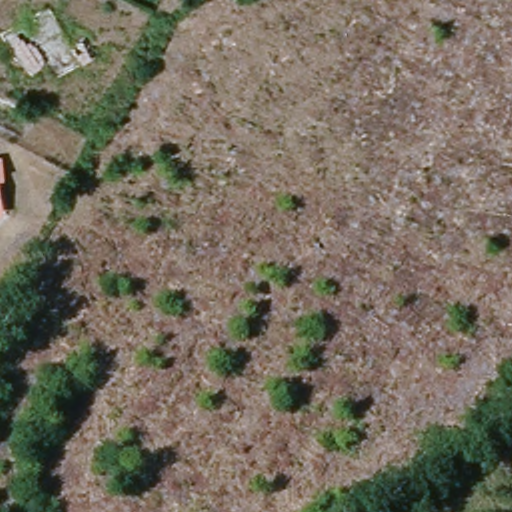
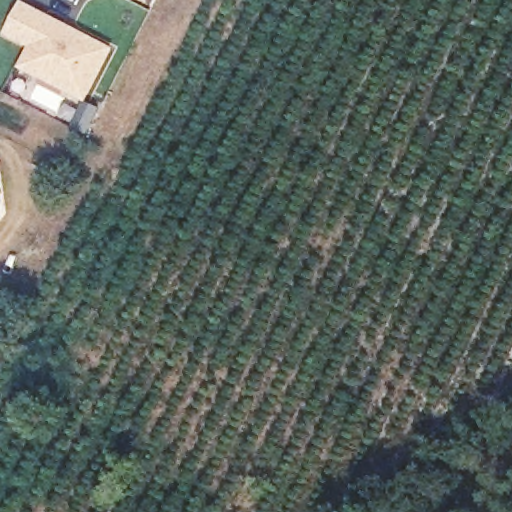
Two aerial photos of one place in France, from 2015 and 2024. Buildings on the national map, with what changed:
new [(116,47),(89,102),(20,70),(31,46),(6,35),(23,0),(116,47)]
demolished [(67,42),(81,34),(94,55),(79,64),(77,61),(52,77),(45,65),(30,74),(11,55),(0,36),(0,32),(22,19),(24,22),(31,18),(30,14),(45,5),(67,42)]
unchanged [(4,172),(0,173),(0,157),(2,156),(4,172)]
unchanged [(0,209),(0,181),(4,209),(0,209)]

